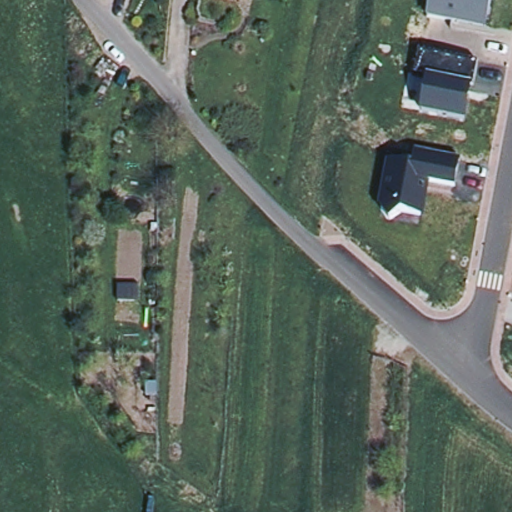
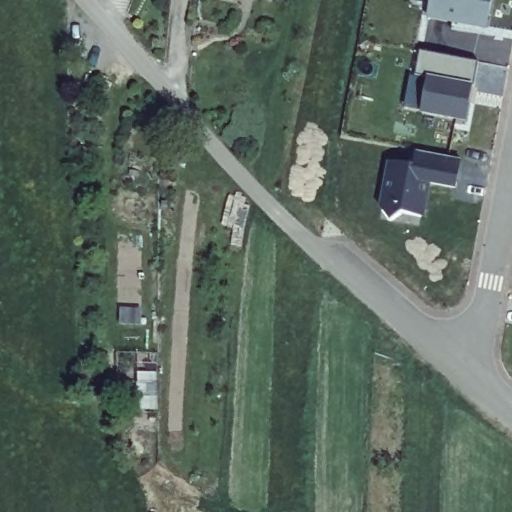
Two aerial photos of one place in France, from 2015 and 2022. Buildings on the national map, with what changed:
unchanged [(425,13),(428,0),(492,0),(487,26),(425,13)]
unchanged [(471,83),(425,73),(415,72),(421,51),(476,60),(471,83)]
unchanged [(464,118),(419,110),(425,73),(471,83),(464,118)]
unchanged [(453,196),(428,192),(423,218),(380,211),(387,164),(414,169),(417,150),(461,157),(453,196)]

